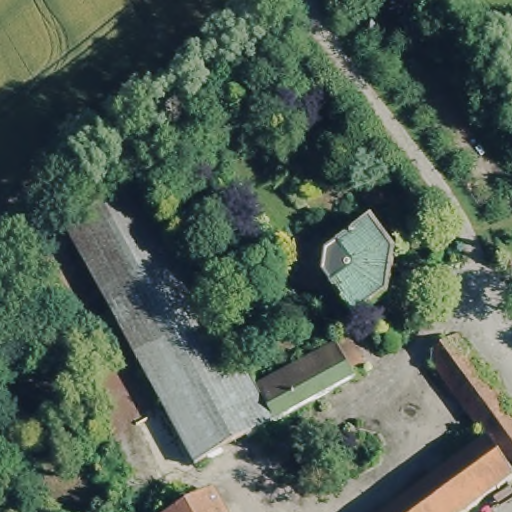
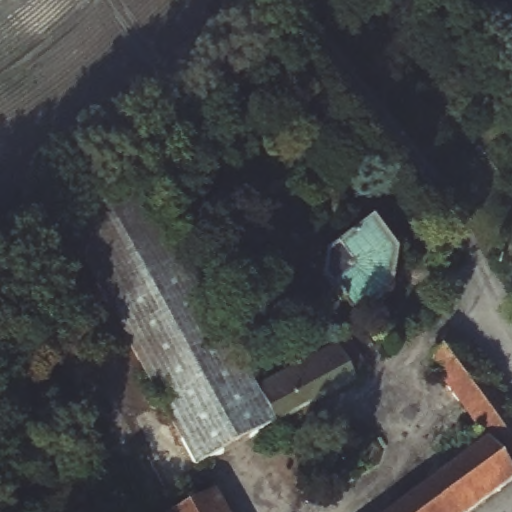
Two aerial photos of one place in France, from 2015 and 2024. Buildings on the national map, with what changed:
unchanged [(110,309),(67,225),(150,187),(191,269),(110,309)]
unchanged [(397,258),(392,293),(352,322),(326,288),(332,281),(325,274),(337,245),(370,223),(397,258)]
unchanged [(227,407),(228,415),(177,443),(110,309),(191,269),(253,392),(227,407)]
unchanged [(458,340),(512,413),(512,482),(472,512),(389,512),(481,443),(430,373),(442,351),(458,340)]
unchanged [(273,428),(253,392),(332,349),(345,345),(358,371),(347,377),(352,386),(273,428)]
unchanged [(273,428),(191,470),(177,443),(228,415),(227,407),(253,392),(273,428)]
unchanged [(226,512),(178,512),(215,492),(226,512)]

